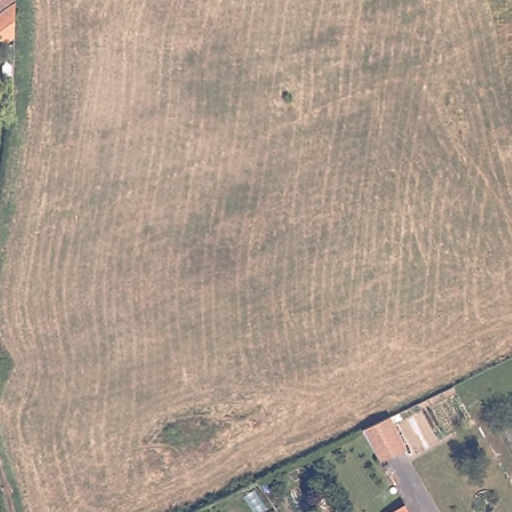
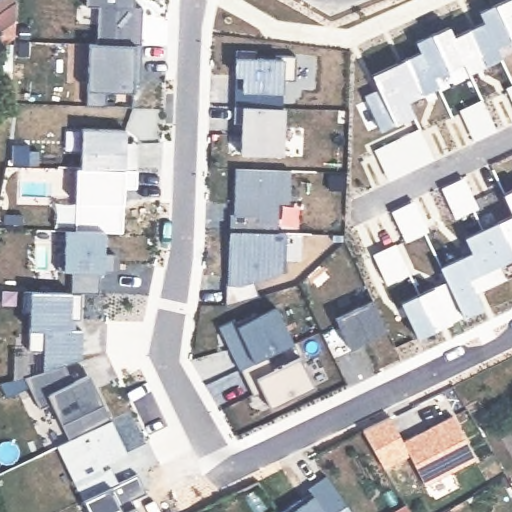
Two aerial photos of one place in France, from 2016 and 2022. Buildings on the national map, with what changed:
unchanged [(16,0),(16,40),(5,48),(0,41),(0,0),(16,0)]
new [(144,8),(141,83),(136,84),(136,92),(112,91),(108,105),(90,105),(93,89),(88,89),(91,44),(101,44),(99,7),(87,6),(87,0),(136,0),(136,7),(144,8)]
new [(500,58),(468,72),(463,63),(435,75),(441,87),(410,100),(415,113),(381,129),(365,95),(378,89),(372,73),(419,51),(415,41),(452,25),(456,34),(483,21),(479,10),(502,0),(512,0),(512,38),(495,44),(500,58)]
new [(240,154),(242,105),(235,105),(236,90),(240,77),(237,76),(236,56),(284,59),(297,58),(296,81),(284,80),(283,107),(286,108),(284,156),(240,154)]
new [(127,141),(140,141),(139,169),(126,169),(81,167),(83,129),(127,132),(127,141)]
new [(226,305),(230,214),(235,214),(236,168),(292,170),(291,203),(280,202),(278,232),(285,232),(285,272),(256,282),(259,295),(226,305)]
new [(512,189),(512,212),(503,193),(512,189)]
new [(511,278),(477,295),(483,308),(419,338),(402,300),(446,281),(441,265),(472,252),(465,236),(512,216),(512,276),(510,277),(511,278)]
new [(106,253),(118,253),(117,272),(106,273),(101,294),(84,293),(83,318),(72,317),(71,330),(84,331),(83,359),(67,364),(79,378),(90,374),(105,404),(129,453),(105,465),(108,471),(113,469),(120,482),(84,499),(57,446),(70,439),(63,423),(60,424),(51,404),(38,408),(26,377),(44,371),(44,351),(29,349),(35,330),(29,329),(31,290),(76,292),(76,271),(65,270),(66,229),(105,231),(106,253)]
new [(351,349),(337,318),(373,300),(387,330),(351,349)]
new [(272,407),(264,389),(254,394),(243,369),(240,370),(230,350),(245,344),(237,326),(277,307),(294,343),(271,354),(279,368),(300,358),(316,387),(272,407)]
new [(426,484),(405,451),(400,442),(455,415),(477,460),(426,484)]
unchanged [(405,451),(380,466),(361,432),(373,426),(388,419),(405,451)]
new [(404,506),(407,512),(392,512),(404,506)]

